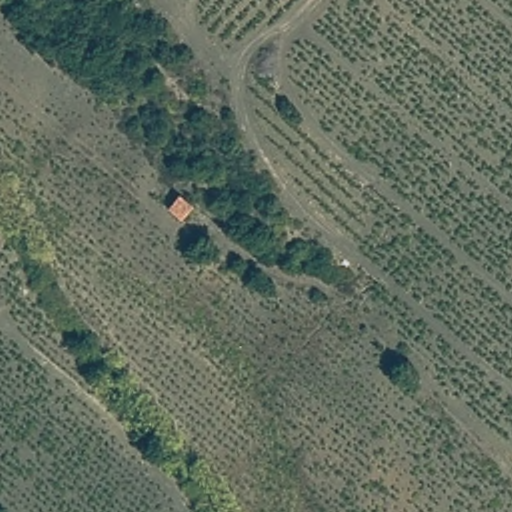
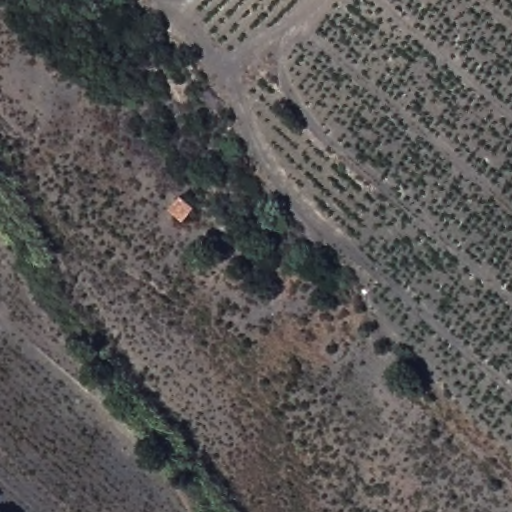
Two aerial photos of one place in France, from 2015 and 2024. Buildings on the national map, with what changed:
unchanged [(197,205),(184,217),(169,206),(179,191),(197,205)]

